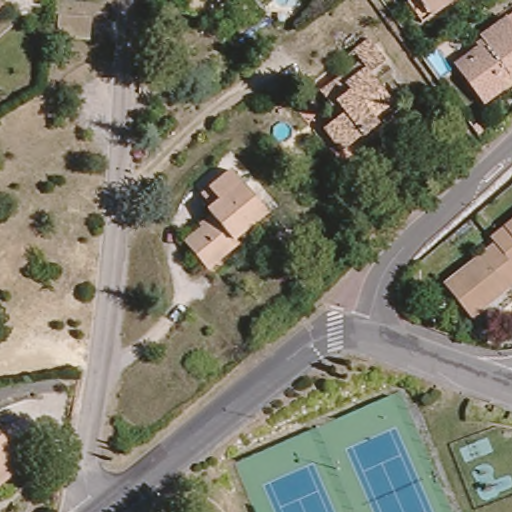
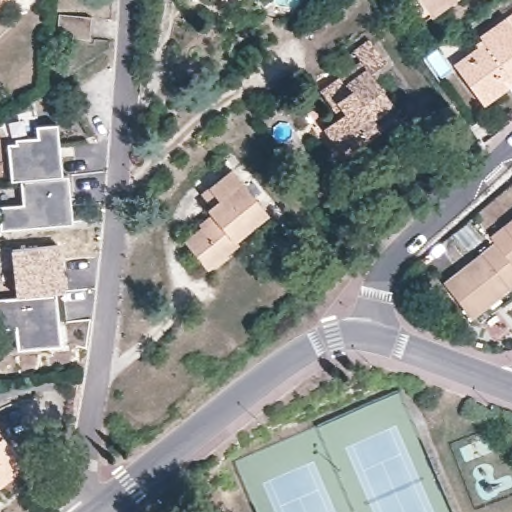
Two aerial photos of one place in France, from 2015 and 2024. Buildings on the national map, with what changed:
unchanged [(420,0),(444,0),(428,11),(420,0)]
unchanged [(507,85),(483,104),(455,65),(486,44),(481,36),(512,14),(512,82),(507,85)]
unchanged [(89,39),(58,37),(59,15),(91,17),(89,39)]
unchanged [(379,120),(361,133),(359,133),(342,145),(324,122),(340,111),(332,101),(321,85),(341,70),(361,56),(354,46),(369,34),(386,56),(371,69),(392,99),(398,106),(379,120)]
new [(22,180),(12,182),(8,145),(19,145),(18,139),(37,137),(37,127),(57,125),(62,176),(22,180)]
unchanged [(212,214),(209,210),(213,206),(202,194),(232,170),(268,212),(235,238),(238,242),(207,267),(186,242),(203,227),(200,224),(212,214)]
new [(1,230),(0,219),(0,207),(24,205),(22,180),(62,176),(70,175),(74,223),(1,230)]
unchanged [(498,243),(493,237),(512,222),(512,261),(498,243)]
unchanged [(512,261),(512,288),(476,316),(448,283),(498,243),(512,261)]
new [(61,291),(17,296),(11,250),(56,245),(61,291)]
new [(15,328),(0,330),(0,297),(17,296),(53,292),(59,345),(16,348),(15,328)]
unchanged [(2,485),(0,484),(0,425),(31,463),(2,485)]

